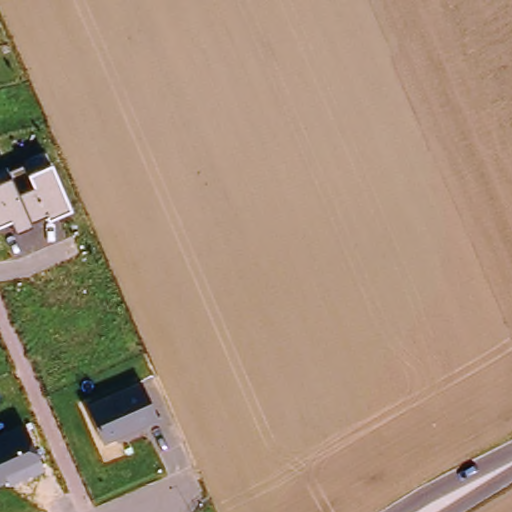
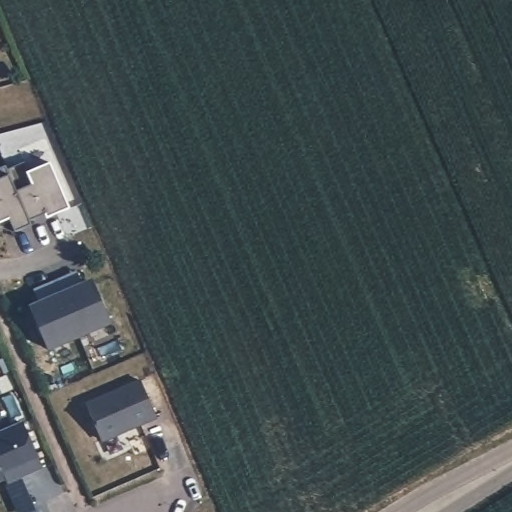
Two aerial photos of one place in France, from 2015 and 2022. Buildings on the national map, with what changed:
unchanged [(5,172),(25,163),(28,170),(50,161),(70,210),(47,219),(45,215),(30,220),(30,224),(13,231),(9,220),(0,224),(0,179),(7,177),(5,172)]
new [(76,270),(83,283),(91,280),(110,324),(49,350),(30,305),(40,301),(33,289),(76,270)]
unchanged [(140,377),(156,419),(102,442),(85,400),(140,377)]
unchanged [(43,467),(7,482),(6,480),(0,482),(0,434),(25,423),(43,467)]

